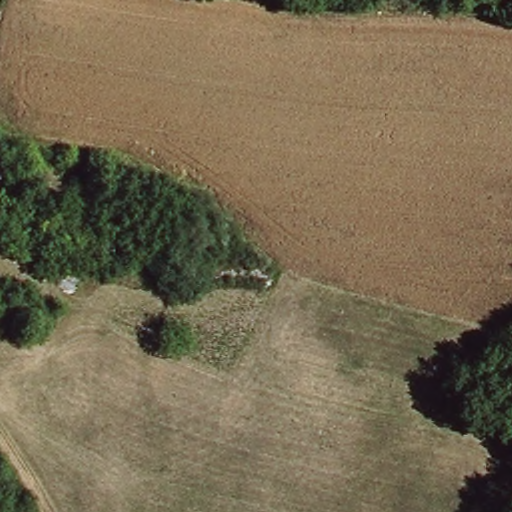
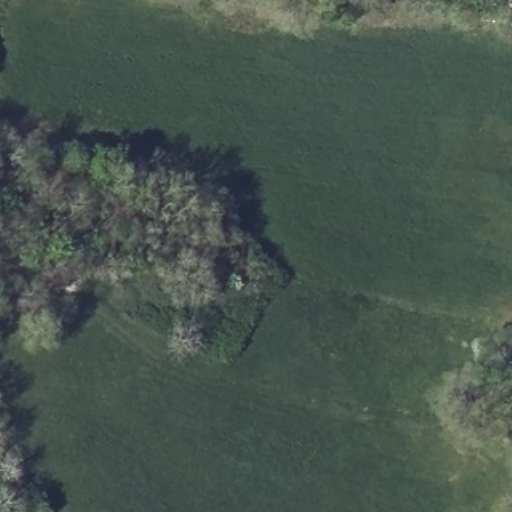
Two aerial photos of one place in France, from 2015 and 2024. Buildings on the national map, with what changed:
[]

